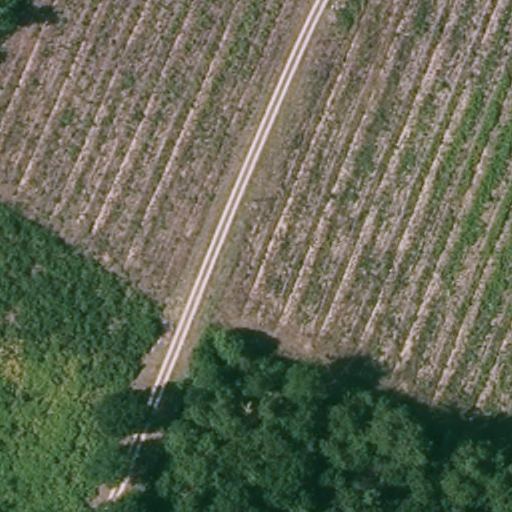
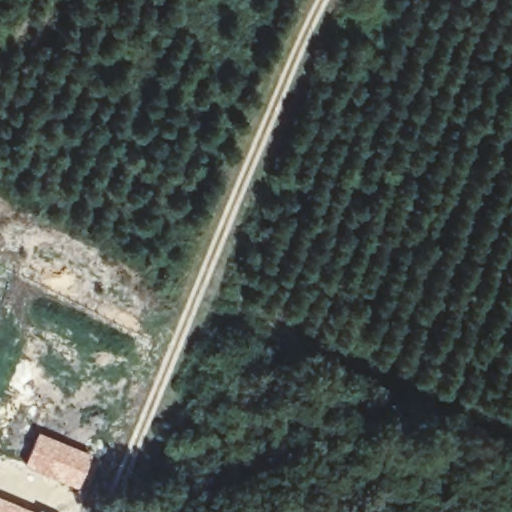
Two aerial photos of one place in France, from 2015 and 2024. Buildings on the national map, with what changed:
new [(37,432),(92,455),(78,490),(22,467),(37,432)]
new [(41,512),(0,512),(0,497),(41,512)]

